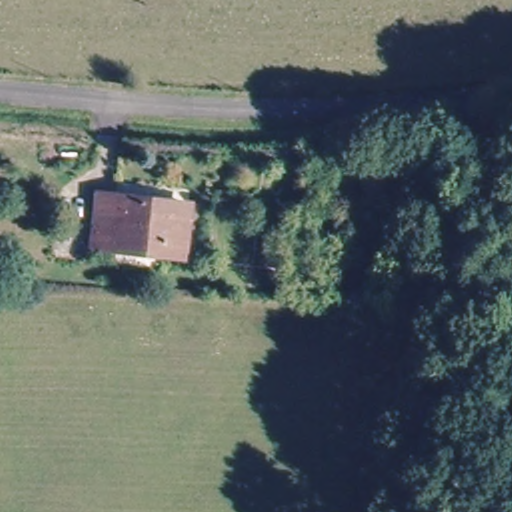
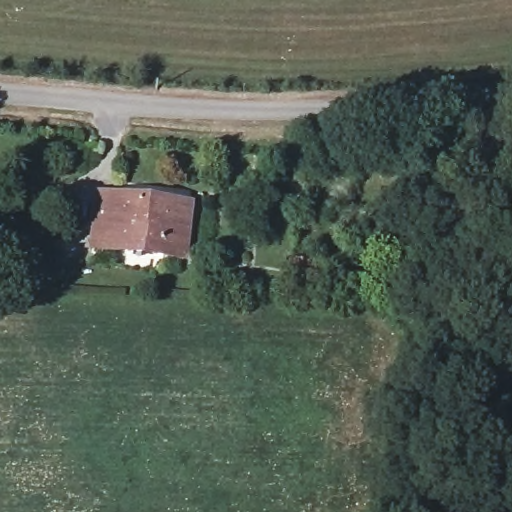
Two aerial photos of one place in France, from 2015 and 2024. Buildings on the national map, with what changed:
unchanged [(94,191),(189,199),(184,254),(89,244),(94,191)]

